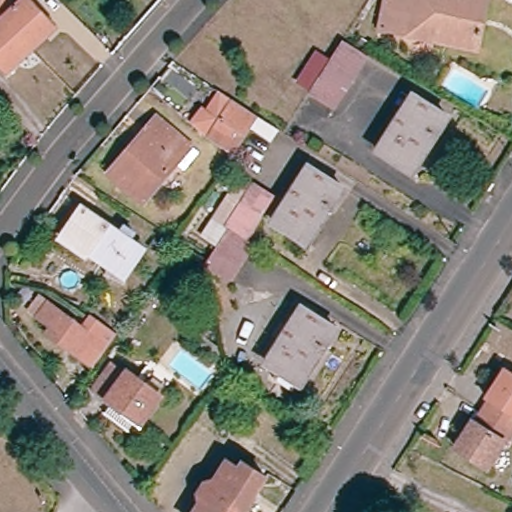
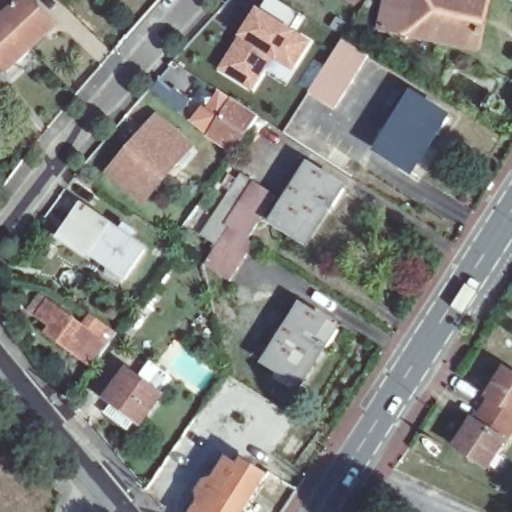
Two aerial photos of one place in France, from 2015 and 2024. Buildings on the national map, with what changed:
unchanged [(10,0),(18,9),(28,0),(31,0),(57,27),(9,71),(0,61),(0,0),(10,0)]
new [(290,28),(298,32),(312,42),(292,73),(277,62),(272,59),(252,92),(217,70),(240,34),(257,10),(266,0),(278,0),(301,15),(290,28)]
unchanged [(489,0),(478,50),(380,30),(386,0),(489,0)]
unchanged [(372,56),(340,106),(313,90),(329,65),(346,40),(372,56)]
unchanged [(414,95),(451,119),(441,135),(435,131),(415,164),(403,157),(398,163),(378,150),(414,95)]
unchanged [(231,100),(254,115),(231,152),(207,137),(231,100)]
unchanged [(156,120),(188,147),(140,203),(107,175),(156,120)]
unchanged [(311,167),(347,191),(336,208),(332,205),(312,237),(300,230),(296,235),(276,222),(311,167)]
unchanged [(209,219),(237,175),(268,197),(241,240),(222,227),(219,225),(209,219)]
unchanged [(146,252),(127,281),(109,277),(117,265),(99,252),(93,260),(67,240),(87,210),(146,252)]
unchanged [(224,281),(198,265),(222,227),(241,240),(248,245),(224,281)]
unchanged [(28,285),(80,325),(89,313),(104,325),(81,356),(35,323),(38,318),(15,301),(28,285)]
unchanged [(305,306),(342,331),(331,348),(326,345),(301,383),(293,378),(288,385),(281,381),(285,375),(268,363),(305,306)]
unchanged [(117,367),(130,377),(136,370),(166,394),(144,425),(139,421),(131,431),(108,414),(116,405),(99,391),(117,367)]
unchanged [(512,372),(512,422),(509,426),(481,408),(507,368),(512,372)]
unchanged [(509,426),(502,437),(506,440),(488,466),(457,445),(481,408),(509,426)]
unchanged [(239,472),(242,468),(266,483),(248,512),(197,512),(199,509),(200,500),(207,487),(215,484),(227,465),(239,472)]

